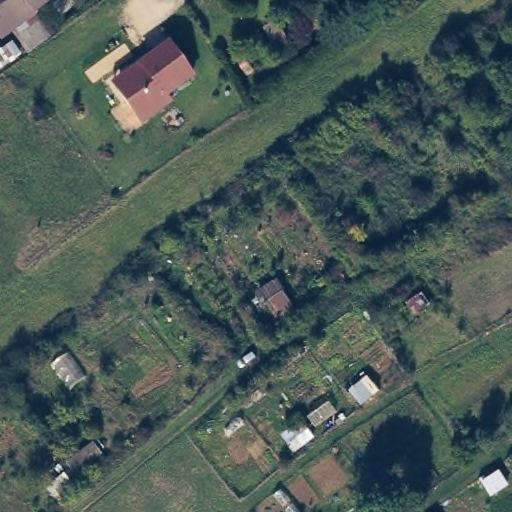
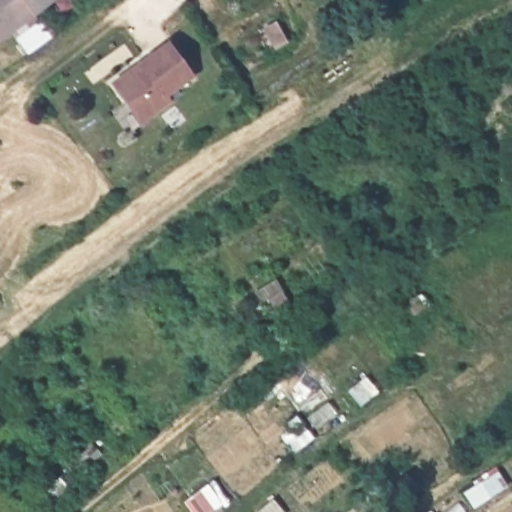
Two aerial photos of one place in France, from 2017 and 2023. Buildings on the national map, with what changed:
unchanged [(34,11),(1,36),(0,34),(0,0),(46,0),(33,11),(34,11)]
unchanged [(167,98),(173,103),(141,126),(109,81),(166,38),(196,78),(167,98)]

